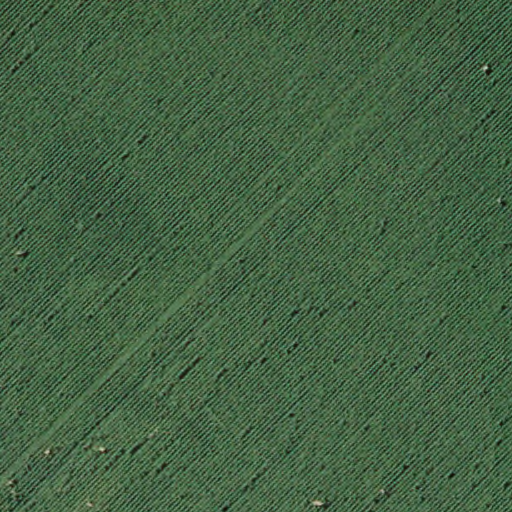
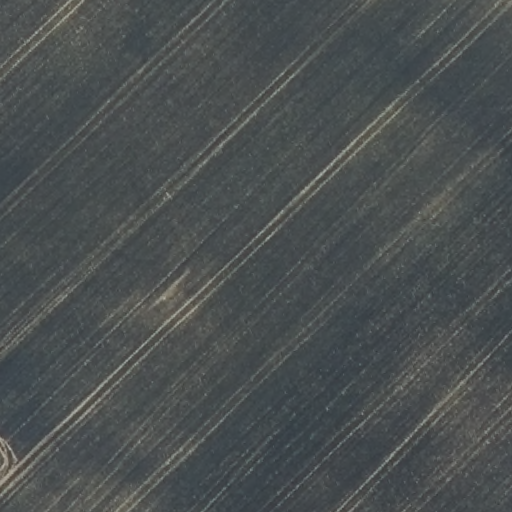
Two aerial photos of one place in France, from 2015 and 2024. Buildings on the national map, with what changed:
[]

